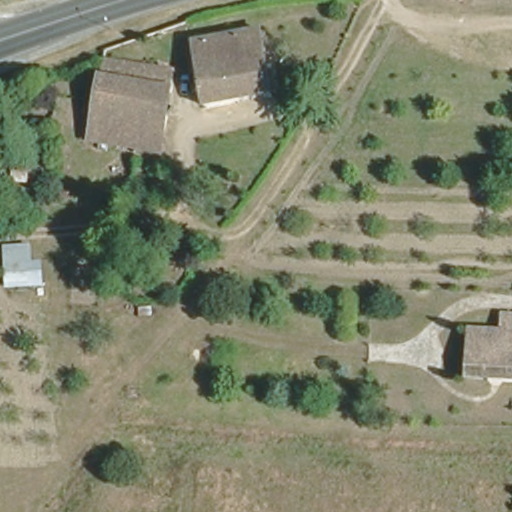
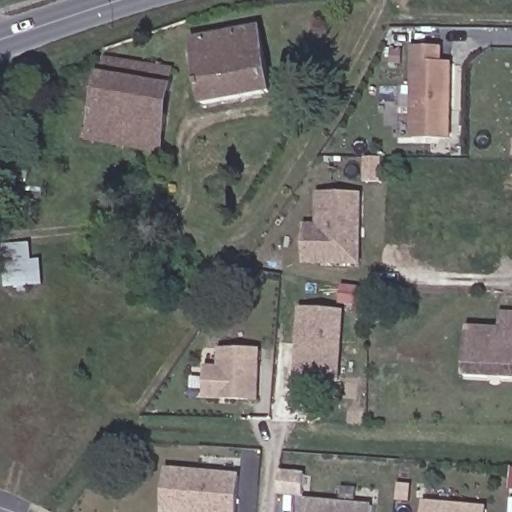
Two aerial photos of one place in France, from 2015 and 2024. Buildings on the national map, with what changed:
unchanged [(276,82),(207,93),(195,31),(266,19),(276,82)]
new [(414,136),(417,48),(444,48),(444,62),(453,62),(451,137),(414,136)]
unchanged [(164,145),(85,131),(87,120),(96,121),(108,53),(178,65),(164,145)]
new [(383,182),(369,182),(369,157),(384,157),(383,182)]
unchanged [(25,180),(12,178),(14,165),(27,166),(25,180)]
new [(305,244),(306,225),(319,226),(320,194),(362,194),(359,263),(321,262),(304,262),(305,244)]
unchanged [(1,288),(0,248),(26,246),(29,264),(40,263),(40,291),(1,288)]
new [(343,312),(338,381),(296,378),(301,309),(343,312)]
unchanged [(470,326),(502,327),(503,312),(512,312),(512,376),(505,375),(489,374),(468,373),(470,326)]
new [(257,399),(204,398),(205,369),(220,369),(220,350),(259,350),(257,399)]
new [(237,512),(164,512),(167,470),(239,476),(237,512)]
new [(305,474),(303,494),(279,492),(281,472),(305,474)]
new [(373,506),(373,512),(301,512),(302,500),(373,506)]
new [(486,512),(425,512),(426,503),(486,509),(486,512)]

